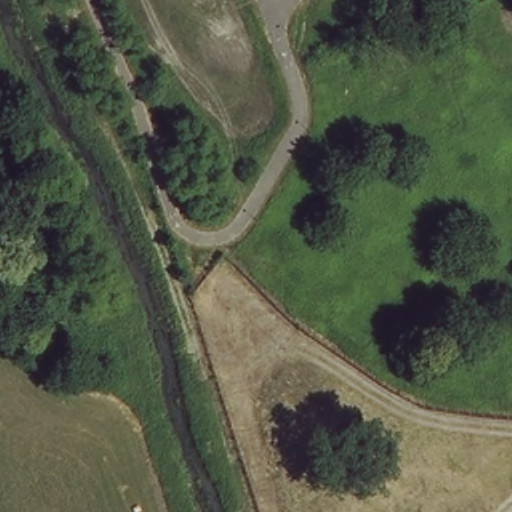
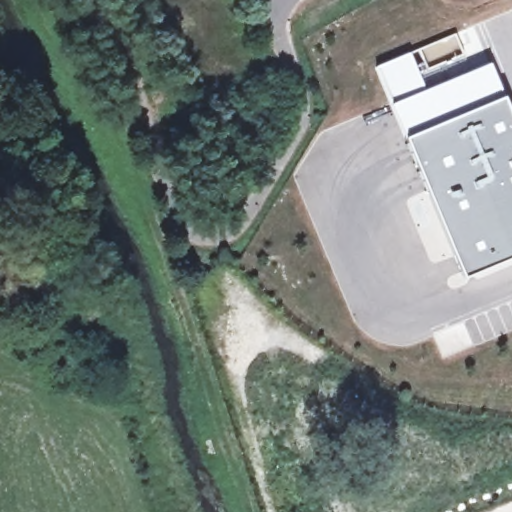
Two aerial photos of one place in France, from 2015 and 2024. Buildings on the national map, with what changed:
new [(464,56),(417,76),(408,54),(455,34),(464,56)]
new [(417,76),(423,92),(391,106),(376,67),(408,54),(417,76)]
new [(423,92),(490,65),(504,98),(405,139),(391,106),(423,92)]
new [(512,119),(512,259),(463,279),(405,139),(504,98),(512,119)]

